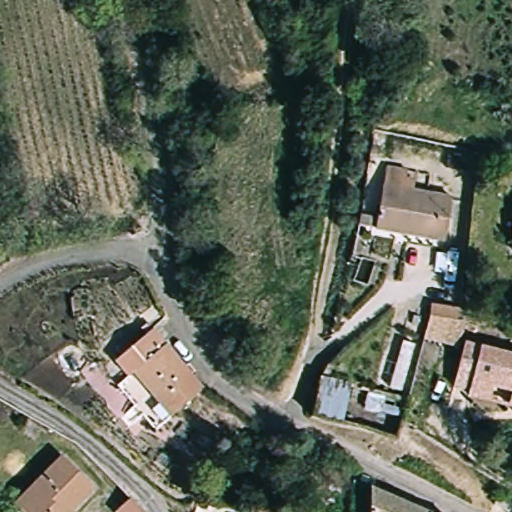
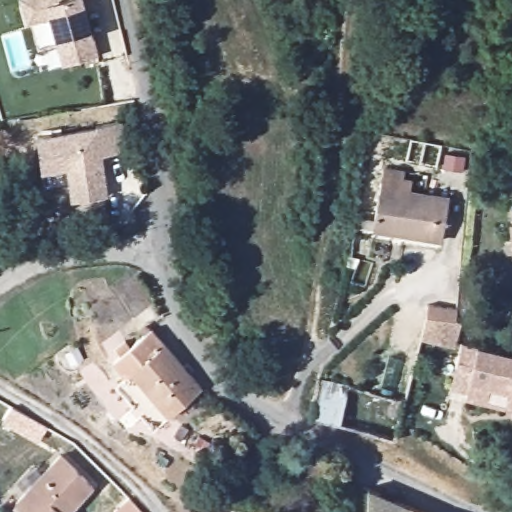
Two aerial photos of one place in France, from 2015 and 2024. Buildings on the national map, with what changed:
new [(98,56),(62,66),(57,47),(48,17),(25,23),(19,0),(84,0),(93,37),(98,56)]
new [(123,122),(128,154),(101,157),(105,196),(69,201),(63,169),(40,173),(36,136),(123,122)]
unchanged [(375,236),(377,218),(382,185),(450,192),(445,232),(443,242),(375,236)]
unchanged [(435,307),(461,311),(460,324),(465,325),(459,350),(430,342),(435,320),(435,307)]
unchanged [(202,396),(191,402),(168,416),(142,372),(131,380),(116,357),(161,331),(196,386),(202,396)]
unchanged [(458,391),(468,346),(512,356),(512,409),(473,400),(474,395),(458,391)]
unchanged [(350,383),(342,420),(316,413),(327,378),(350,383)]
unchanged [(90,486),(68,510),(71,512),(36,512),(21,499),(56,458),(90,486)]
unchanged [(392,500),(422,512),(368,512),(368,490),(392,500)]
unchanged [(512,497),(512,509),(497,502),(502,492),(512,497)]
unchanged [(138,502),(144,512),(115,512),(131,495),(138,502)]
unchanged [(245,508),(271,512),(245,512),(245,508)]

